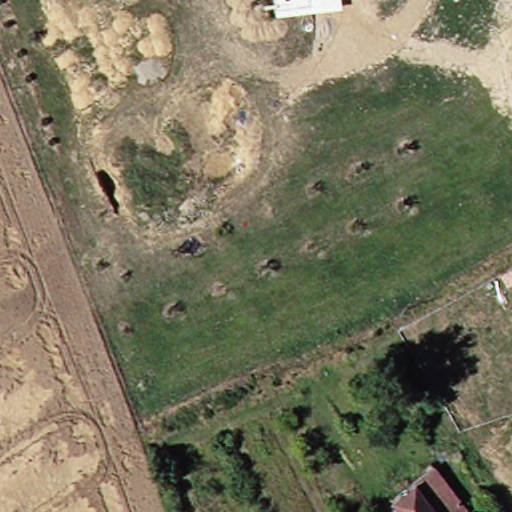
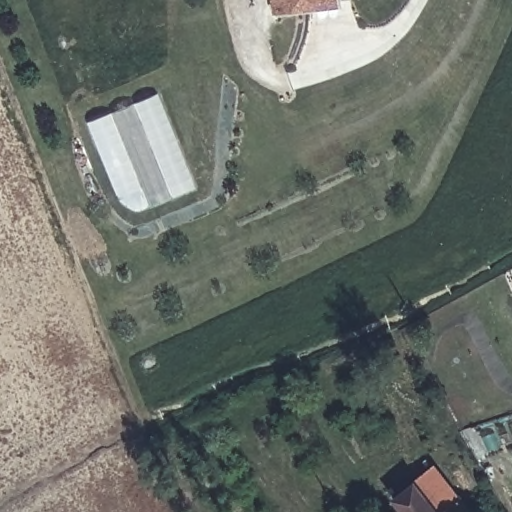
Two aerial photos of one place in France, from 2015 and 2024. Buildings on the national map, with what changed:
new [(275,14),(273,0),(342,0),(343,3),(275,14)]
new [(129,215),(88,122),(160,94),(196,189),(129,215)]
unchanged [(396,496),(433,464),(466,503),(456,512),(410,512),(396,496)]

